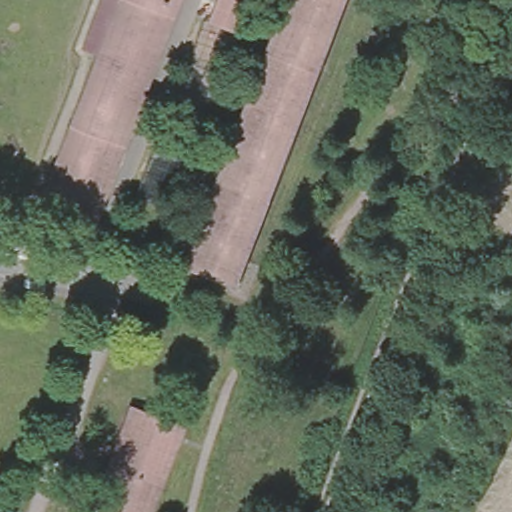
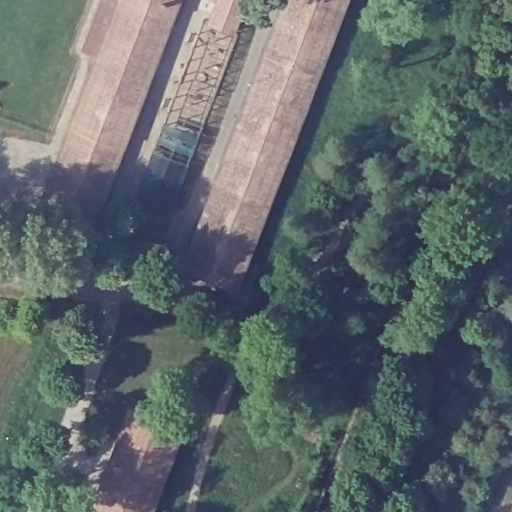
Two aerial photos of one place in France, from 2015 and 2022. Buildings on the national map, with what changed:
unchanged [(40,210),(95,52),(114,0),(171,0),(92,228),(40,210)]
unchanged [(204,55),(179,47),(194,0),(199,0),(220,7),(204,55)]
unchanged [(185,261),(276,0),(337,0),(239,280),(185,261)]
unchanged [(177,423),(143,512),(82,512),(122,403),(177,423)]

